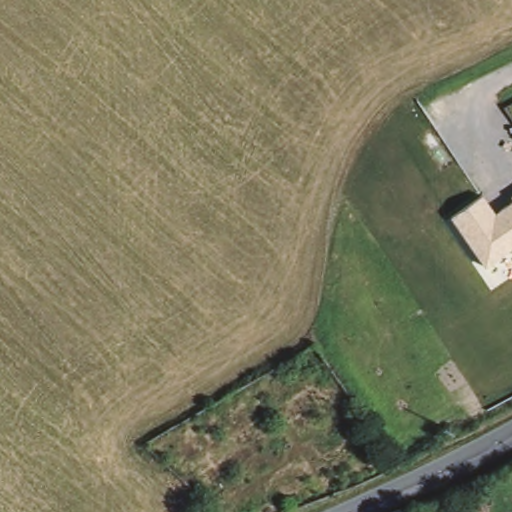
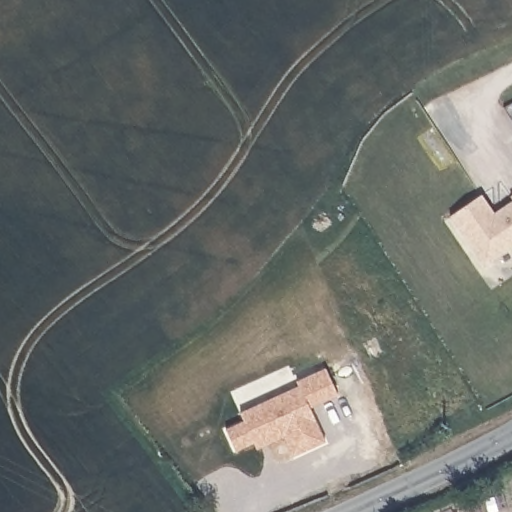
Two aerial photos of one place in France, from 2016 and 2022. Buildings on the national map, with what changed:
unchanged [(512,201),(512,250),(484,268),(448,218),(481,194),(495,212),(512,201)]
unchanged [(512,196),(512,200),(510,197),(512,196)]
new [(337,396),(309,407),(326,442),(294,457),(284,437),(256,450),(253,442),(236,451),(226,430),(243,422),(239,413),(298,387),(296,382),(325,368),(337,396)]
unchanged [(491,508),(480,512),(471,512),(467,500),(486,493),(491,508)]

